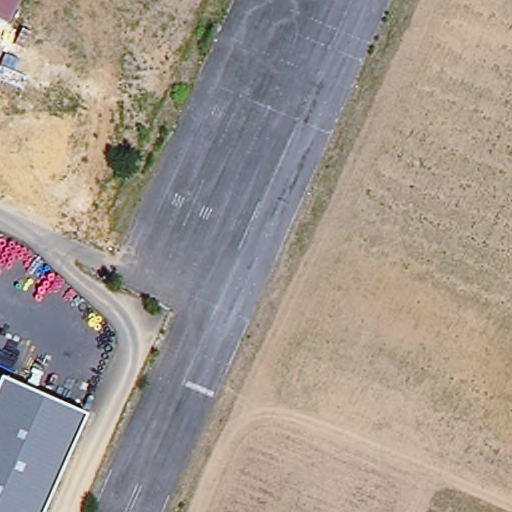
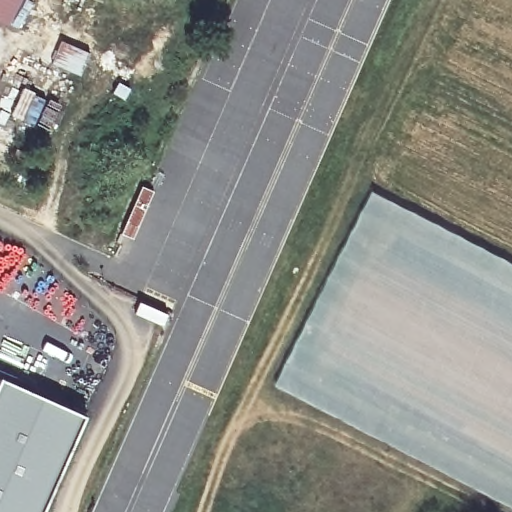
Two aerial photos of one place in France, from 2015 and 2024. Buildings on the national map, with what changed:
unchanged [(8,27),(0,23),(0,0),(21,0),(8,27)]
new [(276,388),(372,194),(512,266),(512,509),(276,388)]
unchanged [(44,512),(0,512),(0,382),(85,420),(44,512)]

